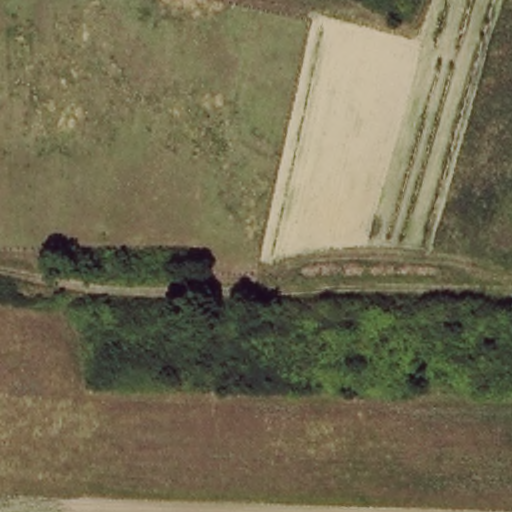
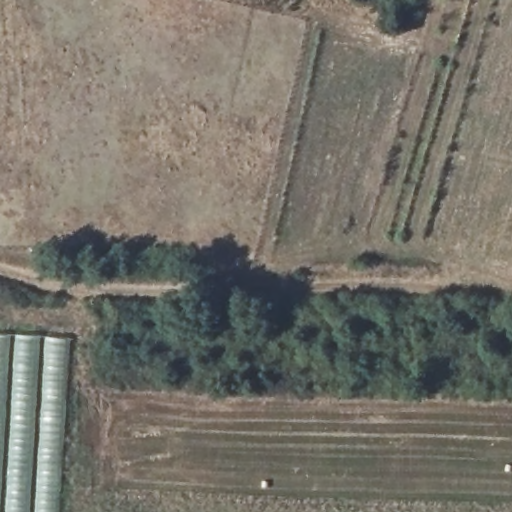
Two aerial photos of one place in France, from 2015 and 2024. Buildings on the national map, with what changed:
new [(69,340),(58,512),(0,512),(0,336),(69,340)]

